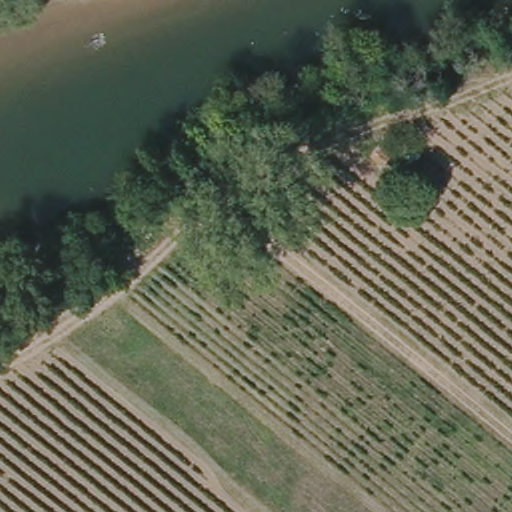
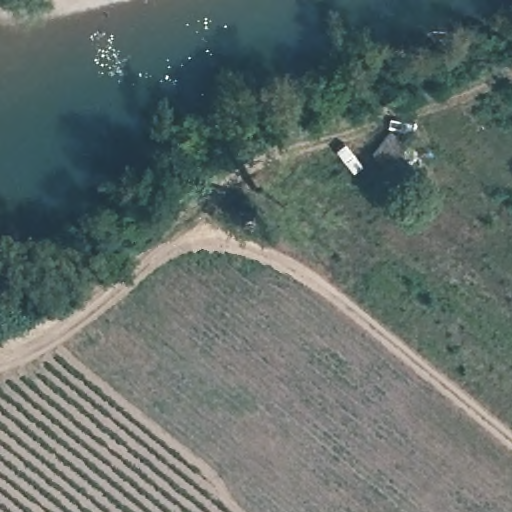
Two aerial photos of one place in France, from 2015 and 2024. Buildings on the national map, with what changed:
unchanged [(392,122),(422,145),(413,159),(384,135),(392,122)]

